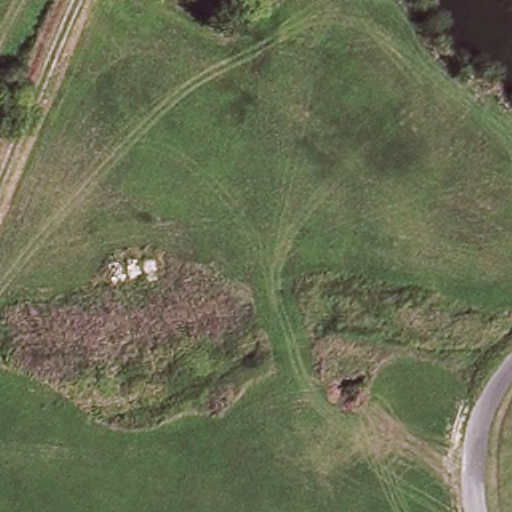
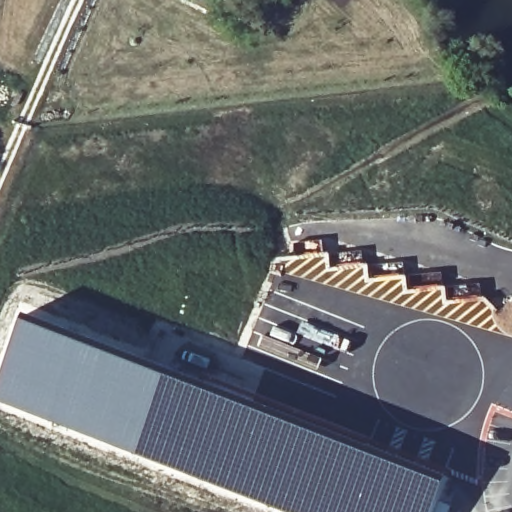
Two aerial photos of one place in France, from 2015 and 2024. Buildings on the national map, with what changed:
new [(50,326),(335,437),(390,457),(448,481),(437,512),(285,512),(0,402),(0,384),(27,317),(50,326)]

